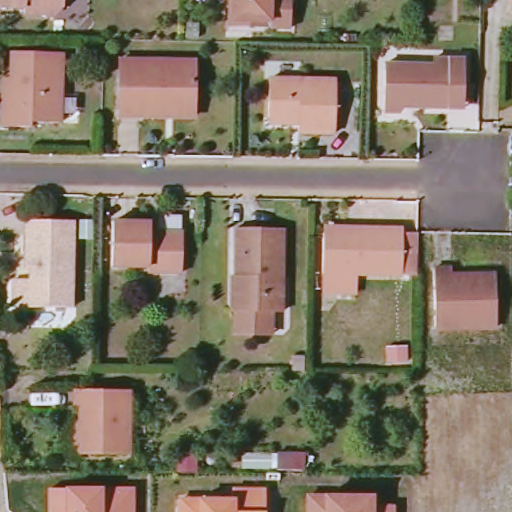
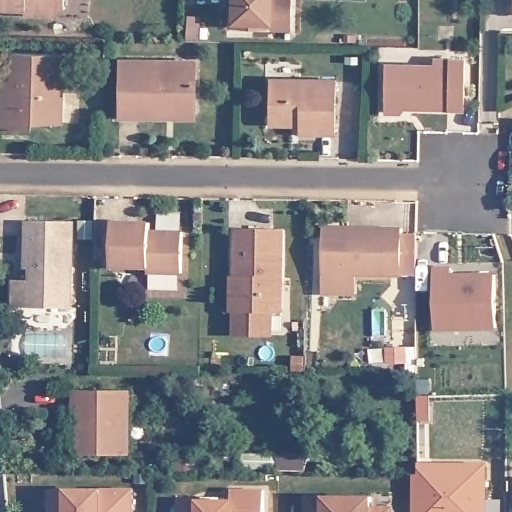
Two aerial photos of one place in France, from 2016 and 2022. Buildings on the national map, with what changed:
unchanged [(67,12),(27,10),(27,5),(0,4),(0,0),(68,0),(67,12)]
unchanged [(294,33),(231,31),(232,0),(295,0),(294,33)]
unchanged [(65,51),(62,122),(34,121),(34,127),(6,126),(7,98),(7,76),(14,76),(15,50),(65,51)]
unchanged [(467,56),(467,98),(450,98),(450,102),(415,102),(415,96),(408,96),(407,101),(403,104),(398,107),(390,108),(390,65),(408,65),(408,62),(437,62),(437,56),(467,56)]
unchanged [(145,116),(124,115),(126,59),(200,61),(199,102),(198,117),(145,116)]
unchanged [(272,118),(273,77),(338,81),(336,133),(300,131),(300,127),(272,126),(272,118)]
unchanged [(82,240),(82,220),(96,220),(95,240),(82,240)]
unchanged [(73,223),(72,308),(17,309),(17,279),(32,279),(32,268),(25,268),(25,251),(25,223),(73,223)]
unchanged [(152,225),(152,231),(185,233),(184,273),(150,273),(150,267),(117,266),(117,224),(152,225)]
unchanged [(327,293),(327,273),(327,235),(357,234),(357,228),(403,228),(403,232),(419,232),(420,273),(403,273),(360,273),(360,293),(327,293)]
unchanged [(286,231),(285,316),(275,315),(277,338),(233,338),(232,275),(235,275),(235,230),(286,231)]
unchanged [(437,269),(453,269),(453,275),(496,275),(497,328),(436,328),(437,269)]
new [(418,380),(432,380),(433,395),(418,395),(418,380)]
unchanged [(132,394),(130,457),(81,456),(74,451),(75,436),(82,426),(82,408),(75,408),(75,393),(132,394)]
unchanged [(276,453),(276,452),(306,453),(305,470),(242,468),(241,452),(276,453)]
new [(413,512),(413,474),(419,474),(419,465),(435,465),(485,466),(485,512),(413,512)]
unchanged [(64,486),(104,487),(105,488),(135,488),(134,512),(47,512),(47,490),(63,490),(64,486)]
unchanged [(230,487),(265,488),(265,512),(177,512),(177,498),(230,497),(230,487)]
unchanged [(374,505),(395,505),(395,512),(305,512),(305,494),(374,494),(374,505)]

